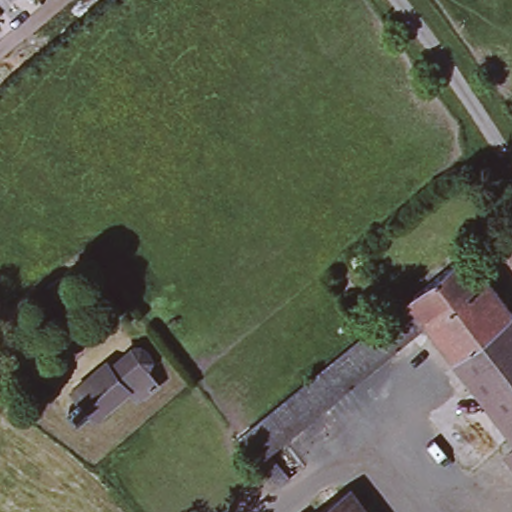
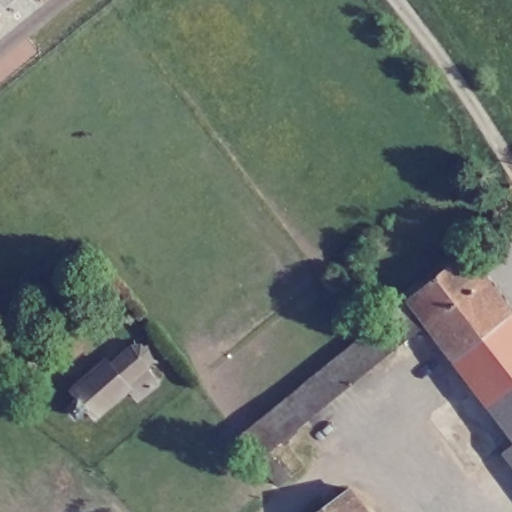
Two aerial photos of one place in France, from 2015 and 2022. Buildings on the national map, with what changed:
unchanged [(437,329),(427,316),(416,302),(458,268),(472,257),(475,260),(494,284),(512,308),(512,318),(460,360),(437,329)]
unchanged [(262,462),(236,430),(402,295),(427,329),(262,462)]
unchanged [(512,428),(460,360),(512,318),(512,428)]
unchanged [(112,355),(138,335),(143,335),(149,336),(153,341),(158,348),(157,355),(153,361),(162,373),(136,393),(131,387),(98,413),(91,404),(82,412),(72,399),(80,393),(71,382),(109,352),(112,355)]
unchanged [(336,506),(353,494),(366,512),(329,512),(336,506)]

